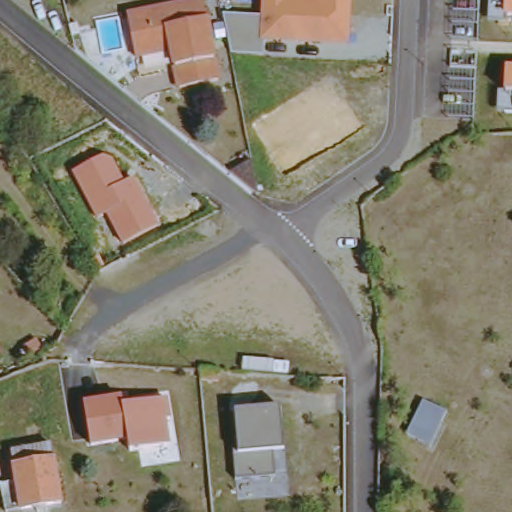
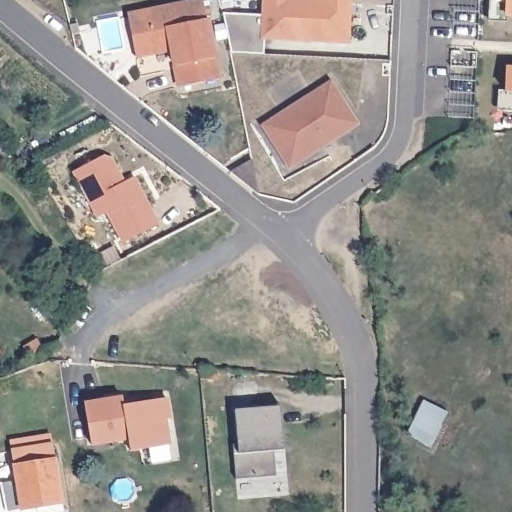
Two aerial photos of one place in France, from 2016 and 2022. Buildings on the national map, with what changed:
unchanged [(130,14),(210,0),(221,80),(183,87),(176,51),(137,58),(130,14)]
unchanged [(265,40),(264,56),(231,52),(222,12),(261,16),(262,0),(350,0),(348,46),(265,40)]
unchanged [(506,16),(505,24),(489,23),(489,0),(512,0),(512,16),(506,16)]
unchanged [(512,68),(512,111),(495,109),(497,90),(505,92),(506,67),(512,68)]
new [(262,124),(330,81),(359,124),(290,168),(262,124)]
unchanged [(114,161),(125,182),(134,177),(157,224),(122,242),(105,212),(97,216),(74,174),(103,157),(114,161)]
unchanged [(0,356),(0,352),(2,355),(0,356)]
unchanged [(15,363),(29,358),(32,367),(22,371),(18,372),(15,363)]
unchanged [(174,450),(133,456),(130,444),(93,451),(87,405),(125,398),(127,409),(170,400),(173,422),(174,450)]
unchanged [(275,453),(277,476),(239,480),(236,456),(241,453),(237,412),(282,408),(286,452),(275,453)]
unchanged [(432,409),(455,423),(435,455),(412,441),(432,409)]
unchanged [(15,478),(10,451),(50,445),(60,503),(5,512),(2,482),(15,478)]

